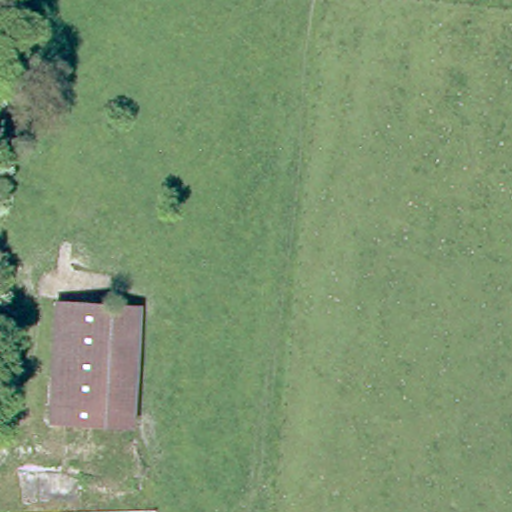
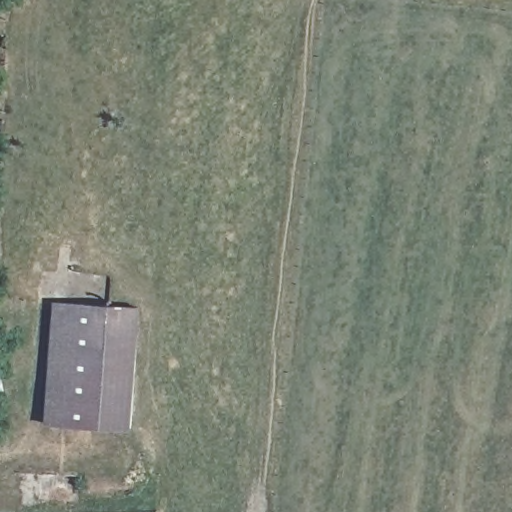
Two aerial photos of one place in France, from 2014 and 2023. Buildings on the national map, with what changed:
unchanged [(132,425),(50,422),(55,300),(137,303),(132,425)]

